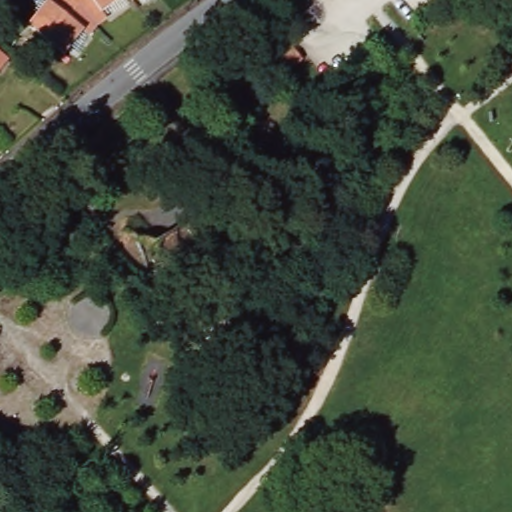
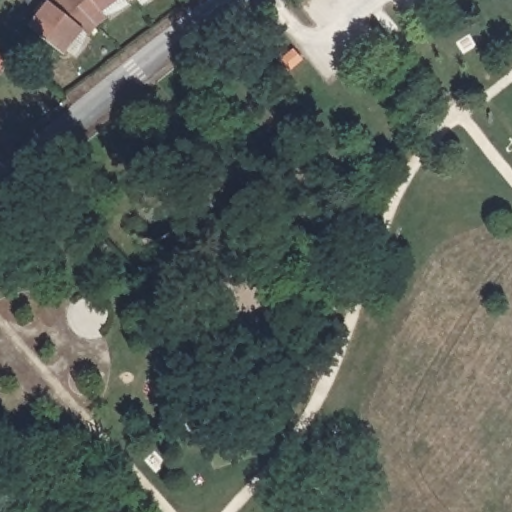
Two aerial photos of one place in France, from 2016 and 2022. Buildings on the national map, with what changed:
unchanged [(94,13),(98,20),(88,28),(80,36),(75,31),(56,49),(52,53),(20,20),(39,0),(113,0),(94,13)]
unchanged [(0,64),(0,44),(10,51),(0,64)]

